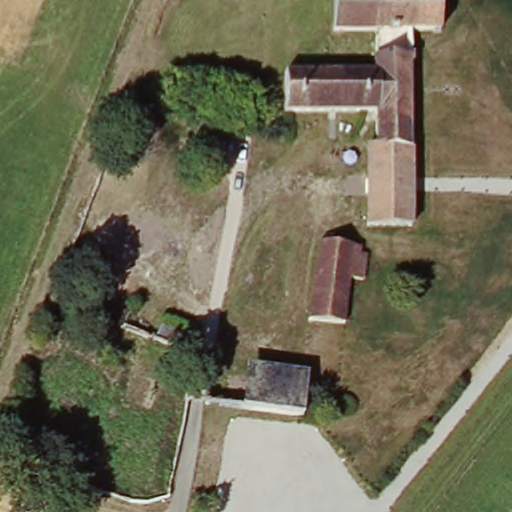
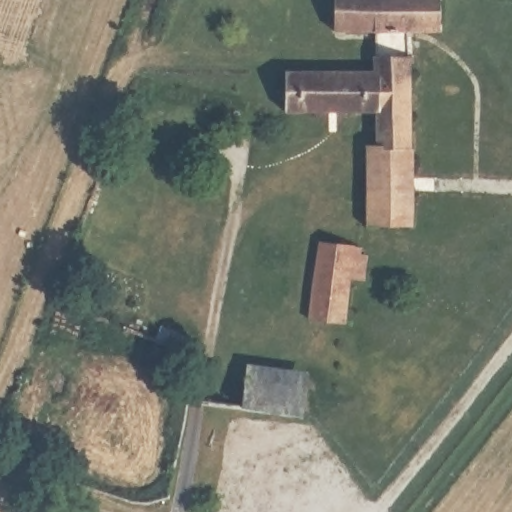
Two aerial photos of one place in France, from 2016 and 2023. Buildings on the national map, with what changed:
unchanged [(328,31),(335,0),(372,0),(372,9),(436,9),(436,54),(417,52),(416,65),(373,63),(373,35),(328,31)]
unchanged [(365,142),(377,144),(377,112),(287,109),(288,70),(374,70),(373,63),(416,65),(412,132),(409,175),(406,228),(363,226),(365,142)]
unchanged [(326,254),(355,253),(349,331),(319,330),(326,254)]
unchanged [(248,372),(305,377),(304,379),(300,417),(241,416),(248,372)]

